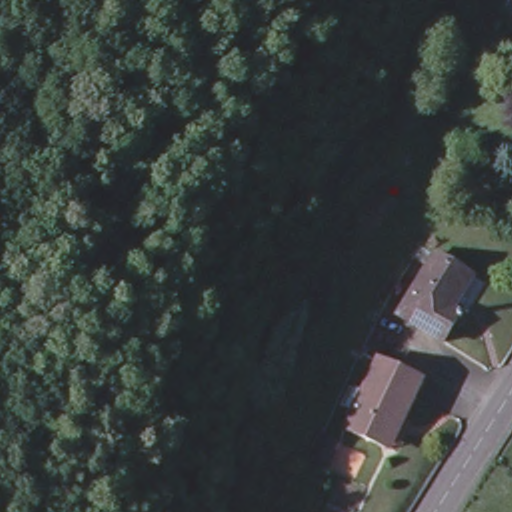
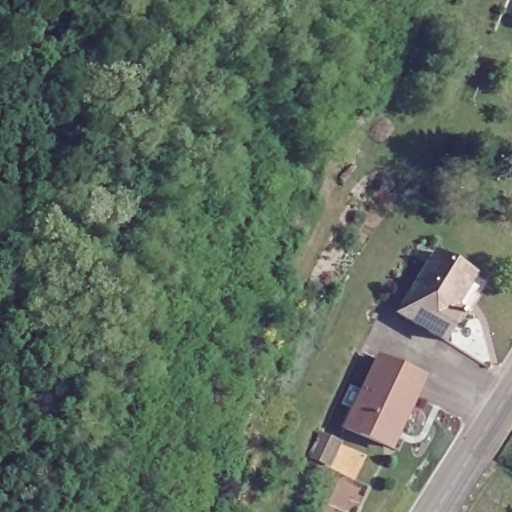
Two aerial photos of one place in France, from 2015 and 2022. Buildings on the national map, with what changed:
unchanged [(461,308),(462,305),(467,308),(462,315),(459,314),(445,337),(399,308),(429,260),(412,249),(419,238),(436,248),(474,272),(454,304),(461,308)]
unchanged [(380,441),(340,423),(373,353),(419,375),(401,413),(387,444),(380,441)]
unchanged [(339,442),(328,465),(310,456),(321,433),(339,442)]

